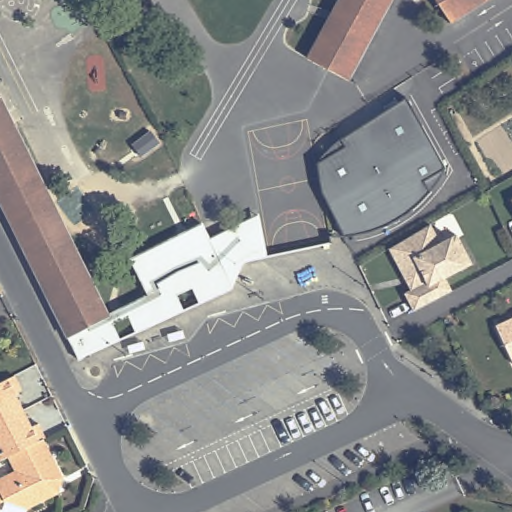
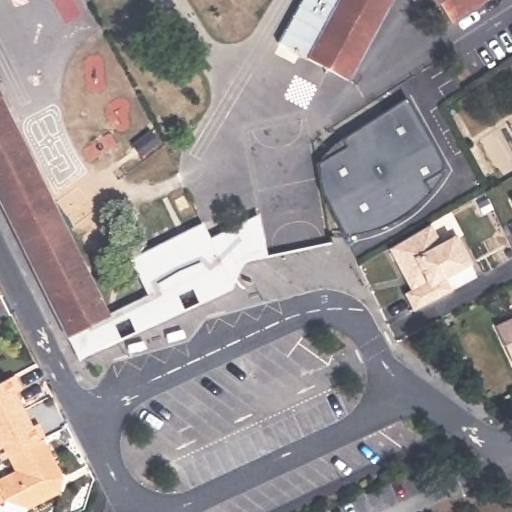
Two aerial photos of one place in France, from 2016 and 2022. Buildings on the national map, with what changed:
new [(338,0),(305,59),(278,44),(303,0),(338,0)]
unchanged [(400,0),(352,87),(312,65),(348,0),(400,0)]
unchanged [(432,0),(496,0),(451,29),(432,0)]
unchanged [(145,297),(154,292),(153,291),(136,256),(206,222),(220,249),(230,270),(235,282),(236,282),(236,283),(236,285),(235,286),(235,287),(234,287),(233,288),(145,327),(86,353),(80,357),(73,342),(69,333),(0,195),(0,91),(110,313),(145,297)]
unchanged [(442,181),(439,186),(433,192),(427,199),(421,205),(415,211),(407,216),(400,220),(392,224),(385,227),(368,232),(362,234),(330,194),(320,166),(322,162),(326,156),(329,153),(331,151),(336,146),(341,142),(406,99),(448,169),(446,174),(442,181)]
unchanged [(252,258),(251,258),(250,258),(249,257),(248,256),(247,253),(241,235),(238,225),(262,213),(264,221),(270,249),(270,255),(252,258)]
unchanged [(405,277),(390,246),(429,223),(441,246),(457,237),(462,246),(472,266),(445,280),(452,293),(440,300),(415,312),(406,296),(412,292),(405,277)]
unchanged [(512,361),(497,332),(512,325),(512,361)]
unchanged [(22,391),(15,394),(31,427),(39,423),(45,438),(43,440),(8,457),(1,461),(0,460),(0,459),(0,384),(10,380),(15,377),(22,391)]
unchanged [(15,471),(8,457),(43,440),(62,479),(59,494),(28,510),(5,502),(0,504),(0,479),(15,471)]

